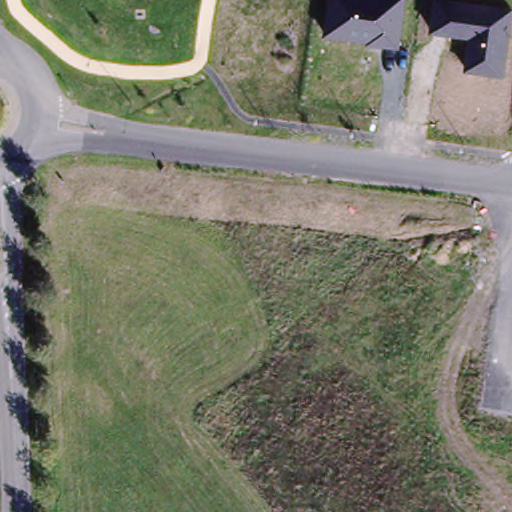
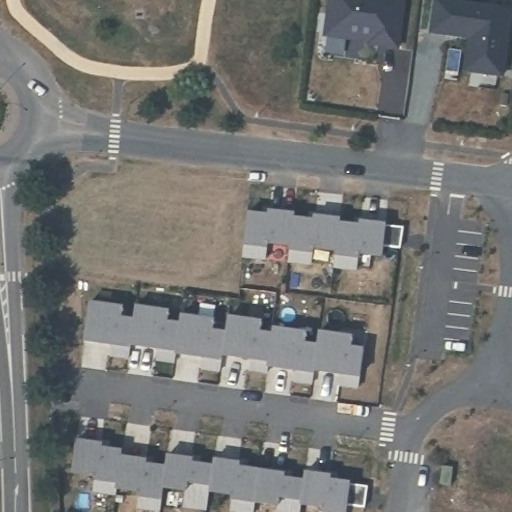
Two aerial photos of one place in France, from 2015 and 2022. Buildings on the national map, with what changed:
unchanged [(368,42),(324,37),(329,0),(405,0),(399,49),(367,46),(368,42)]
unchanged [(468,39),(430,34),(435,0),(451,0),(512,8),(512,21),(505,77),(465,72),(468,39)]
new [(241,209),(262,211),(262,207),(290,210),(289,215),(285,245),(260,242),(258,254),(236,252),(241,209)]
new [(285,245),(289,215),(308,217),(308,212),(335,216),(335,220),(332,250),(308,247),(307,260),(284,257),(285,245)]
new [(332,250),(335,220),(354,222),(355,217),(398,222),(398,227),(395,244),(379,242),(378,251),(355,249),(353,265),(330,262),(332,250)]
new [(83,298),(117,303),(116,314),(127,316),(125,339),(123,352),(105,350),(106,338),(78,335),(83,298)]
new [(127,316),(130,302),(164,307),(162,318),(173,320),(170,348),(170,357),(151,354),(152,342),(125,339),(127,316)]
new [(173,320),(175,311),(208,316),(207,327),(220,329),(217,348),(215,366),(197,363),(198,352),(170,348),(173,320)]
new [(220,329),(222,312),(255,317),(254,328),(265,330),(262,360),(263,360),(262,366),(244,363),(245,352),(217,348),(220,329)]
new [(265,330),(267,323),(302,327),(300,339),(312,341),(309,364),(307,377),(289,375),(290,363),(263,360),(262,360),(265,330)]
new [(312,341),(313,327),(349,332),(347,343),(360,345),(355,382),(336,379),(337,367),(309,364),(312,341)]
new [(69,435),(96,438),(95,443),(115,446),(110,487),(110,493),(87,491),(88,475),(65,472),(69,435)]
new [(160,462),(160,451),(187,454),(187,458),(207,461),(203,490),(200,508),(177,506),(180,490),(156,487),(160,462)]
new [(115,452),(140,455),(140,460),(160,462),(156,487),(153,510),(131,507),(132,491),(110,488),(115,452)]
new [(207,461),(208,454),(235,458),(235,462),(254,465),(250,501),(248,512),(245,512),(225,509),(227,493),(203,490),(207,461)]
new [(254,465),(280,468),(280,472),(299,476),(295,502),(295,512),(271,512),(272,504),(250,501),(254,465)]
new [(299,476),(300,467),(327,470),(326,475),(363,480),(360,507),(342,504),(342,512),(318,512),(319,506),(297,503),(295,502),(299,476)]

